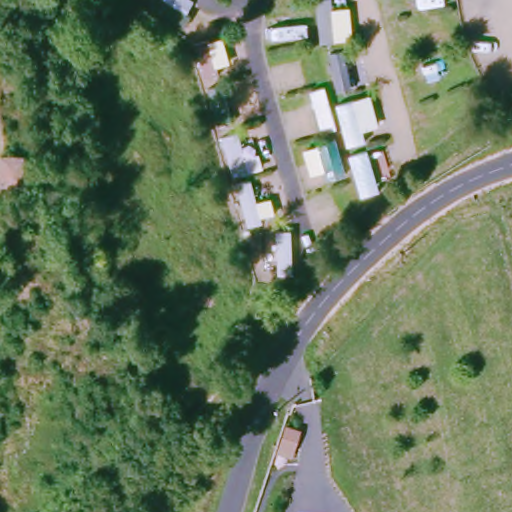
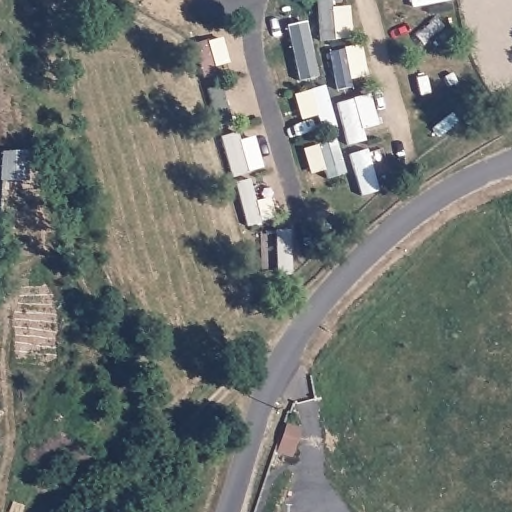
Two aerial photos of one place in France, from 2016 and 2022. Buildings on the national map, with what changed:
unchanged [(28,153),(29,182),(2,182),(2,154),(28,153)]

